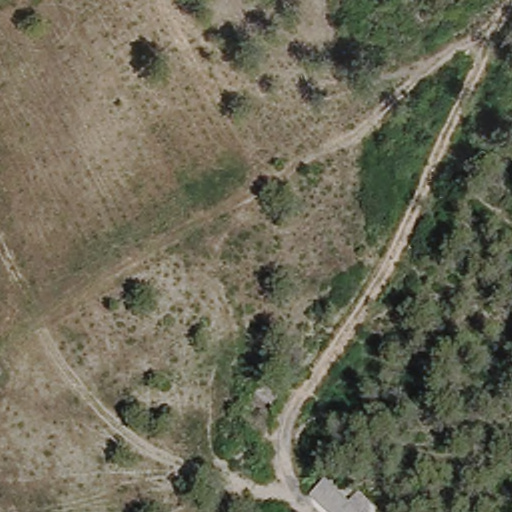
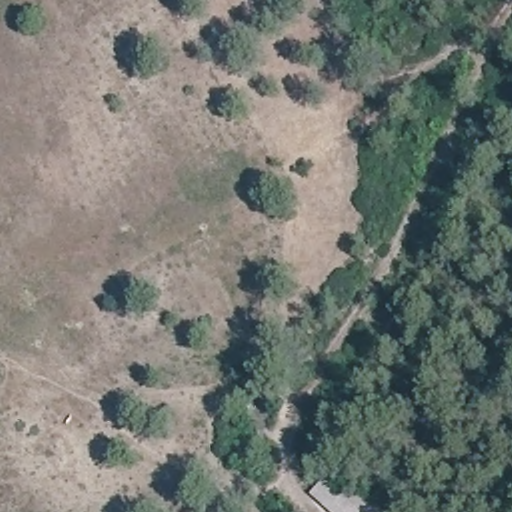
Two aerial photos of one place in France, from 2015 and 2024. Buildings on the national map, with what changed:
unchanged [(310,494),(323,477),(348,502),(360,490),(375,502),(367,512),(330,512),(310,494)]

